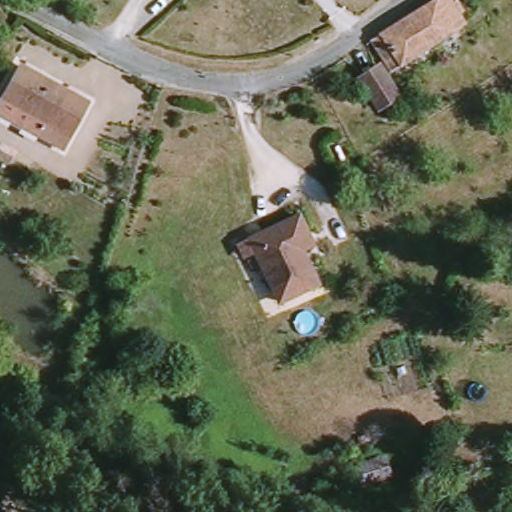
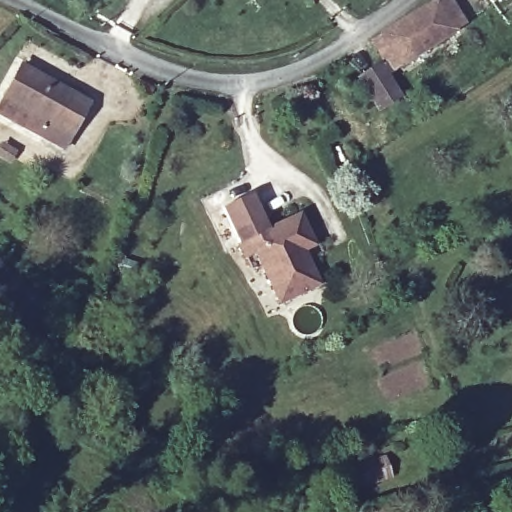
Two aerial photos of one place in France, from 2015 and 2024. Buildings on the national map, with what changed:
unchanged [(378,41),(444,0),(456,0),(472,27),(396,73),(378,41)]
unchanged [(372,102),(356,75),(376,63),(393,90),(372,102)]
unchanged [(23,70),(90,105),(65,151),(37,137),(0,117),(0,112),(6,102),(23,70)]
new [(268,229),(250,238),(255,251),(242,258),(222,210),(253,194),(268,229)]
unchanged [(250,238),(299,215),(308,234),(315,247),(300,254),(315,287),(278,303),(250,238)]

